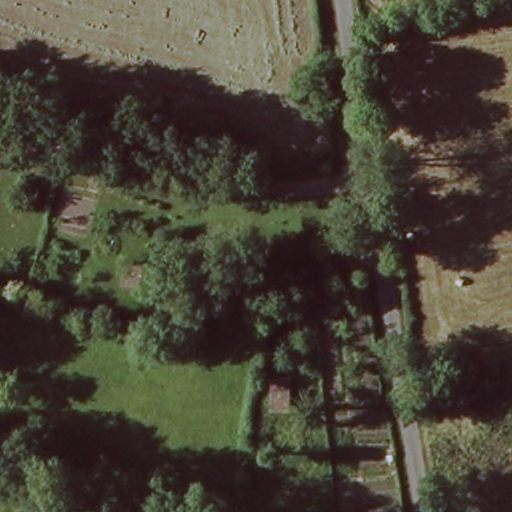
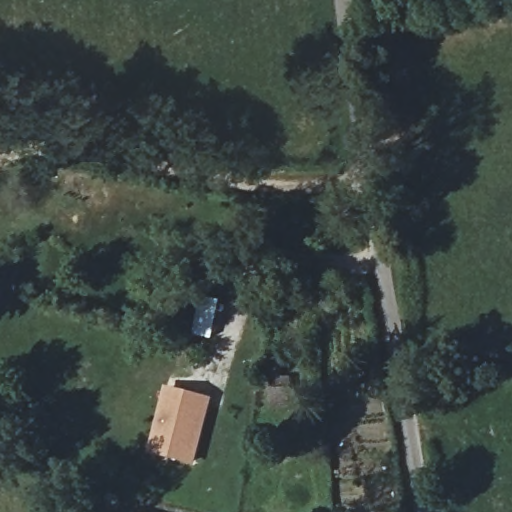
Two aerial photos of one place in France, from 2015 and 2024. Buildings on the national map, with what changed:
new [(152,449),(165,397),(167,388),(206,398),(201,417),(190,459),(152,449)]
new [(132,511),(135,512),(131,512),(132,511)]

